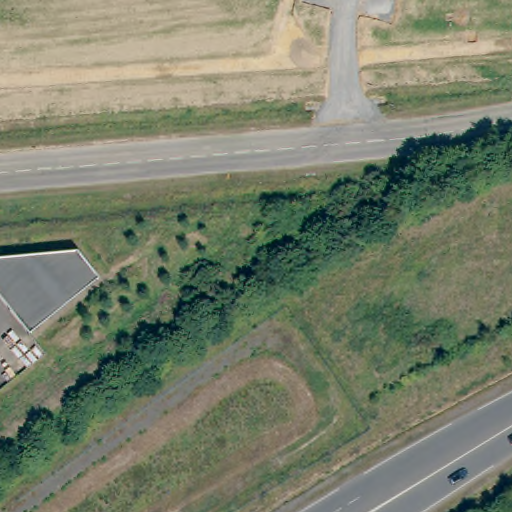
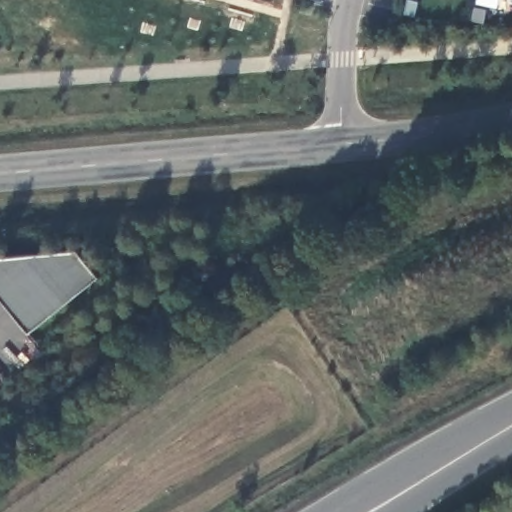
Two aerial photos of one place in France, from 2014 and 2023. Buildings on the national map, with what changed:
unchanged [(102,281),(32,338),(0,298),(0,261),(80,254),(102,281)]

